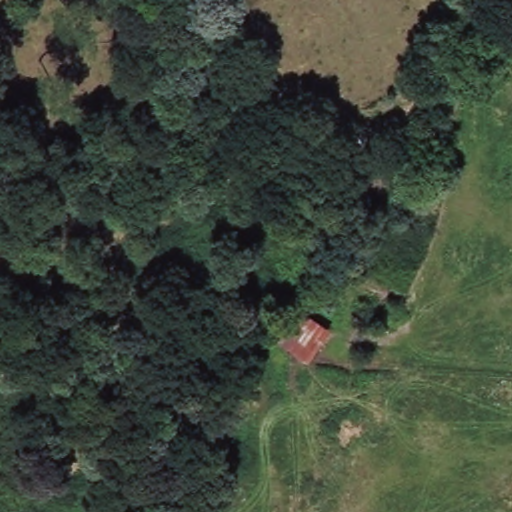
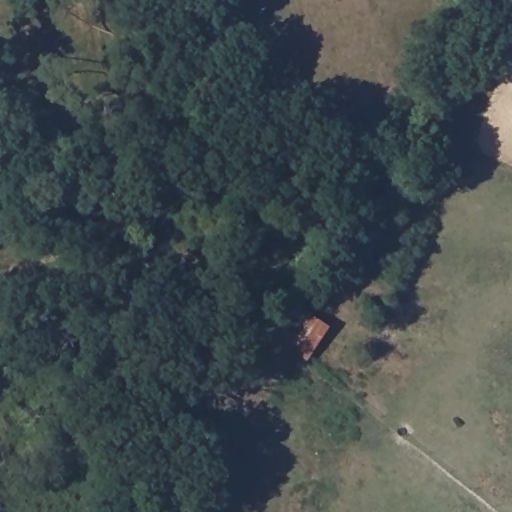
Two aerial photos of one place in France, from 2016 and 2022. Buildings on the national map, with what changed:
unchanged [(292,306),(332,331),(306,363),(268,337),(292,306)]

